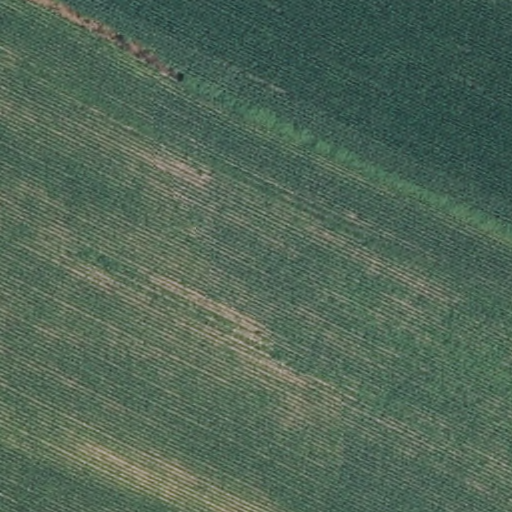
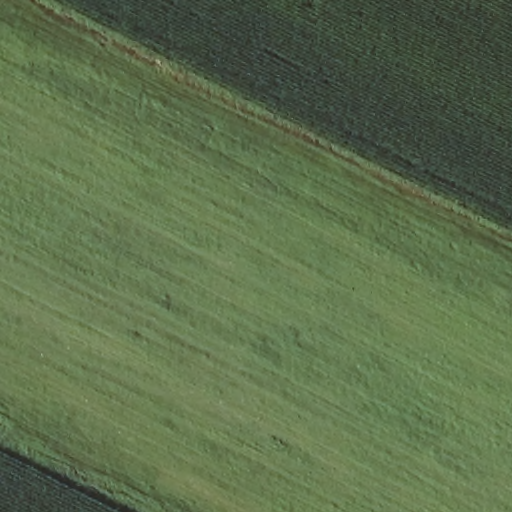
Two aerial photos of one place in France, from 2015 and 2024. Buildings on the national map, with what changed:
[]

